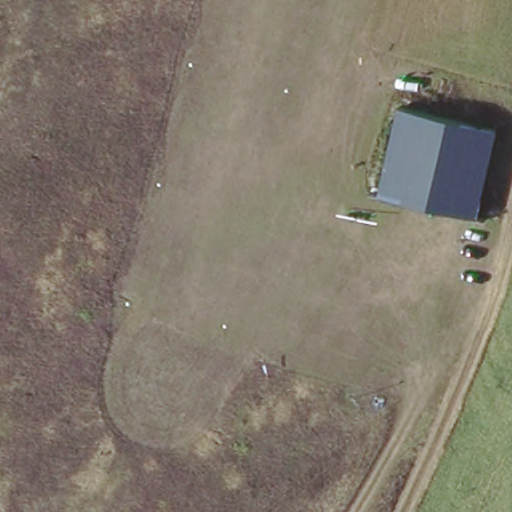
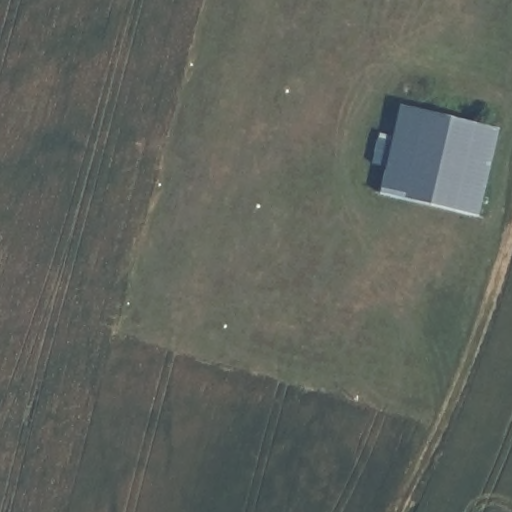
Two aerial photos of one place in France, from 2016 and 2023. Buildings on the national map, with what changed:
unchanged [(397,108),(498,130),(478,211),(380,188),(397,108)]

